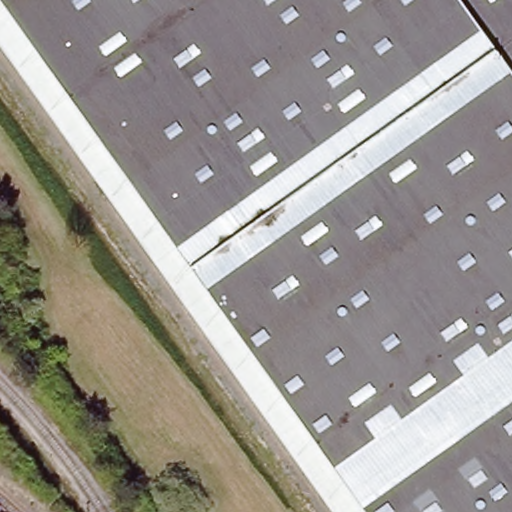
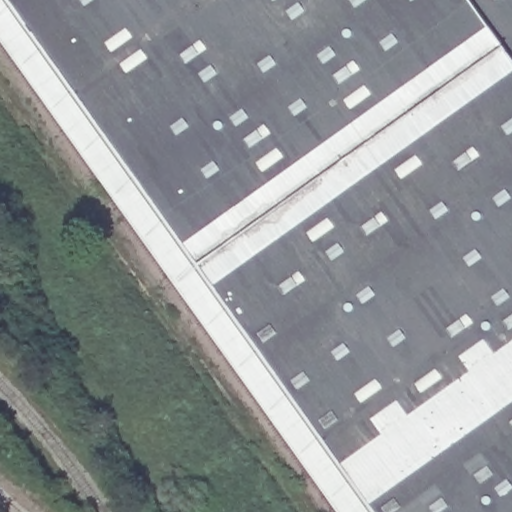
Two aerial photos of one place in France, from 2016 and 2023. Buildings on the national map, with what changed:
unchanged [(367,512),(335,512),(97,179),(0,44),(0,0),(2,0),(120,167),(367,512)]
unchanged [(120,167),(2,0),(512,0),(512,512),(367,512),(120,167)]

